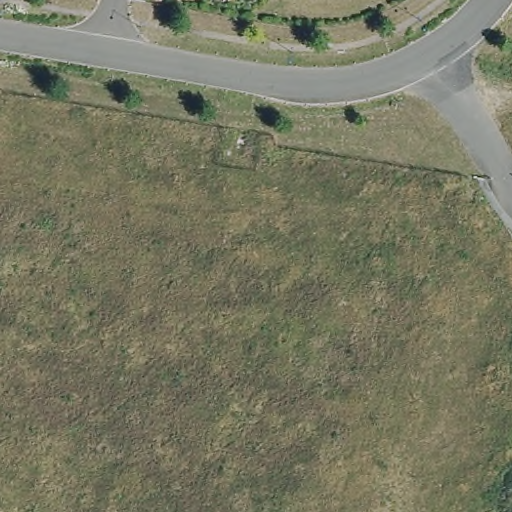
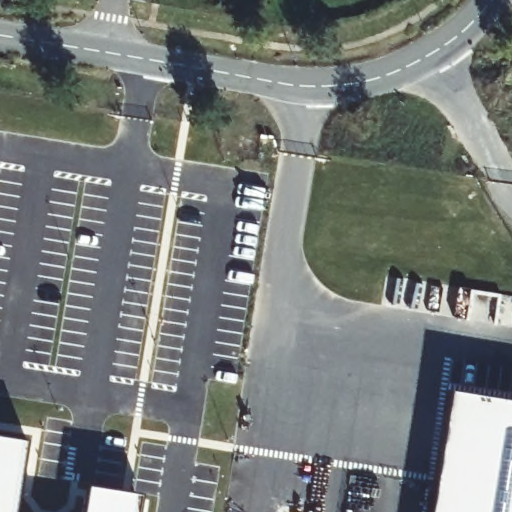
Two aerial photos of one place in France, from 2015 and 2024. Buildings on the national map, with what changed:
new [(450,392),(512,402),(512,512),(431,512),(450,392)]
new [(14,512),(0,512),(0,437),(27,442),(14,512)]
new [(87,487),(141,496),(138,512),(83,512),(87,487)]

